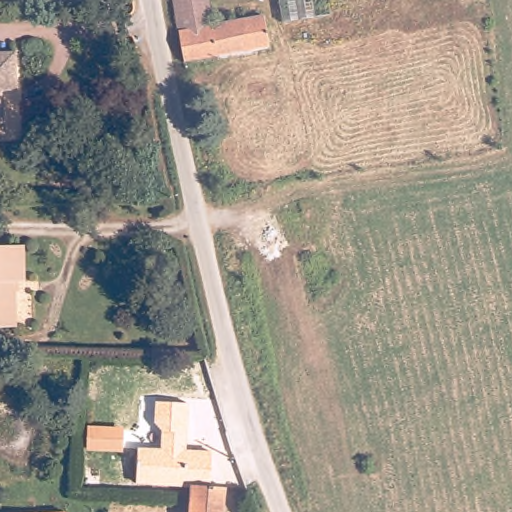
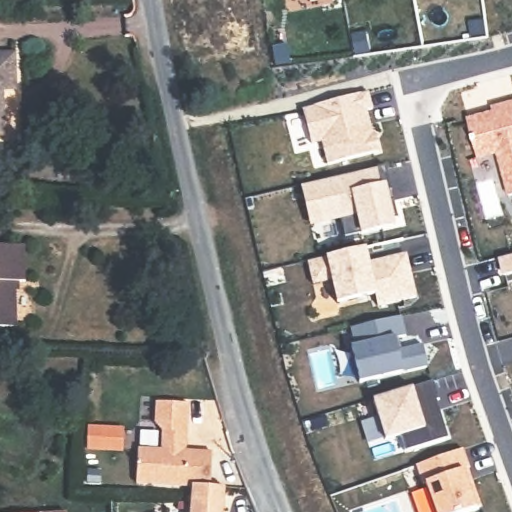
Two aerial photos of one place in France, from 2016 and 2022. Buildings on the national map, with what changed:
unchanged [(273,53),(187,66),(175,0),(210,0),(216,29),(270,20),(273,53)]
demolished [(283,20),(281,0),(326,0),(329,19),(283,20)]
unchanged [(17,56),(19,91),(4,91),(6,136),(0,136),(0,57),(17,56)]
new [(364,89),(368,106),(358,109),(360,114),(363,113),(369,133),(372,132),(376,149),(324,163),(318,139),(307,142),(298,107),(364,89)]
new [(498,101),(512,98),(512,192),(505,194),(493,151),(474,156),(463,116),(490,109),(488,104),(498,101)]
new [(377,226),(340,235),(336,215),(332,216),(328,198),(302,205),(297,184),(382,165),(387,189),(381,190),(383,200),(389,199),(393,215),(387,217),(389,223),(377,226)]
new [(362,247),(366,262),(405,253),(408,270),(411,269),(417,295),(378,304),(376,293),(338,302),(332,279),(314,283),(308,260),(362,247)]
unchanged [(26,249),(27,282),(17,283),(16,329),(0,329),(0,249),(26,249)]
new [(512,270),(501,273),(496,256),(512,252),(512,270)]
new [(396,316),(400,335),(389,337),(392,350),(417,344),(422,366),(356,381),(347,346),(351,345),(347,327),(396,316)]
new [(429,380),(435,399),(424,402),(427,411),(436,409),(444,437),(401,450),(396,434),(381,439),(369,398),(429,380)]
unchanged [(187,453),(161,451),(162,430),(155,421),(156,401),(189,403),(187,453)]
new [(465,467),(458,469),(462,480),(467,478),(477,505),(458,512),(432,512),(422,482),(419,483),(412,464),(458,448),(465,467)]
unchanged [(137,484),(138,449),(214,455),(214,472),(222,472),(224,473),(225,476),(223,482),(216,490),(193,488),(137,484)]
unchanged [(191,512),(192,499),(193,488),(216,490),(227,492),(225,512),(191,512)]

